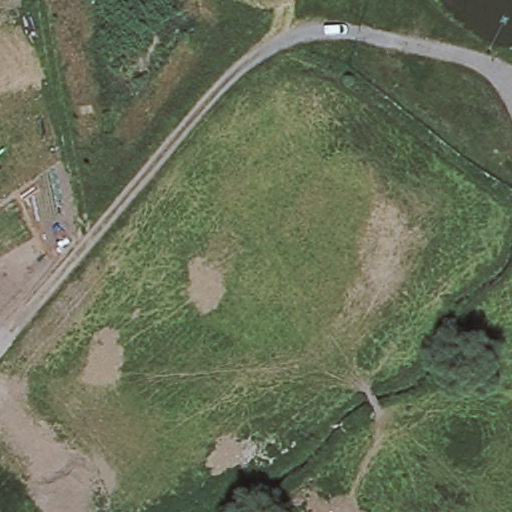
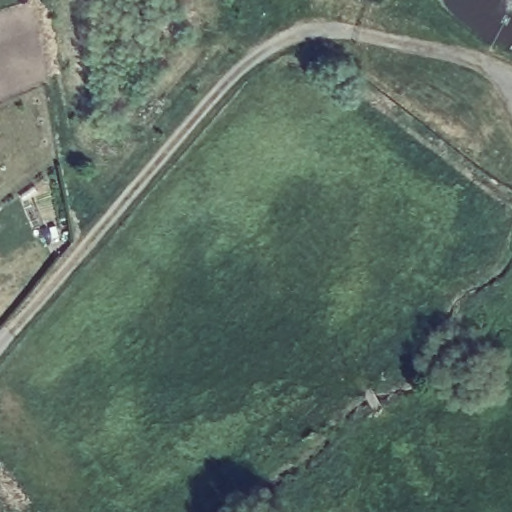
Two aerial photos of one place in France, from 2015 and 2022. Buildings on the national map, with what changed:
[]

